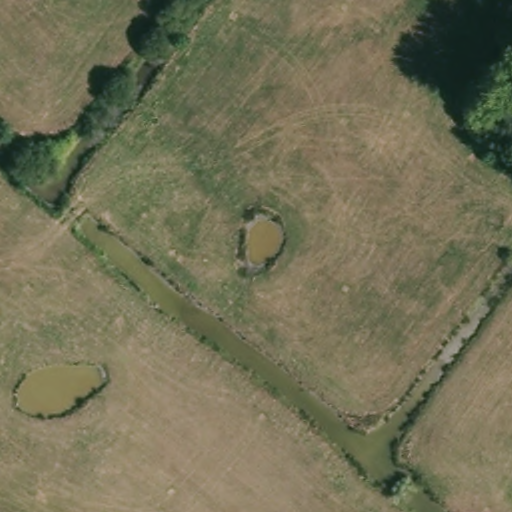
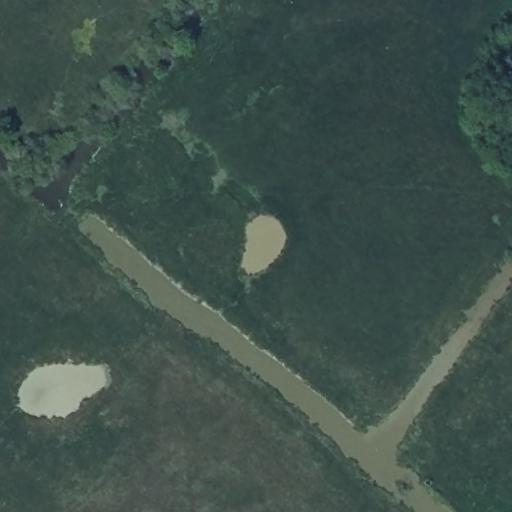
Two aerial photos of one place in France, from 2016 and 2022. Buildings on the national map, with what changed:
unchanged [(512,100),(512,114),(505,109),(512,100)]

